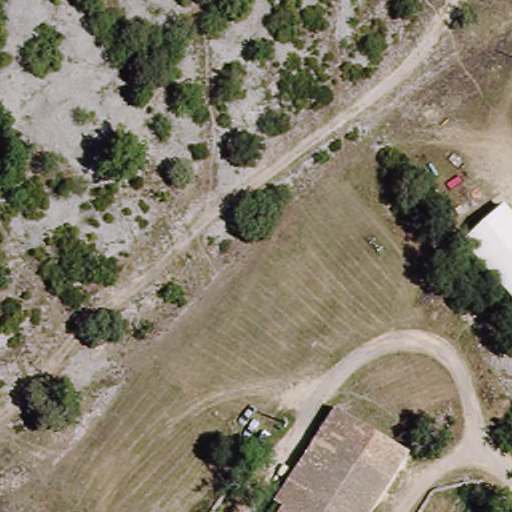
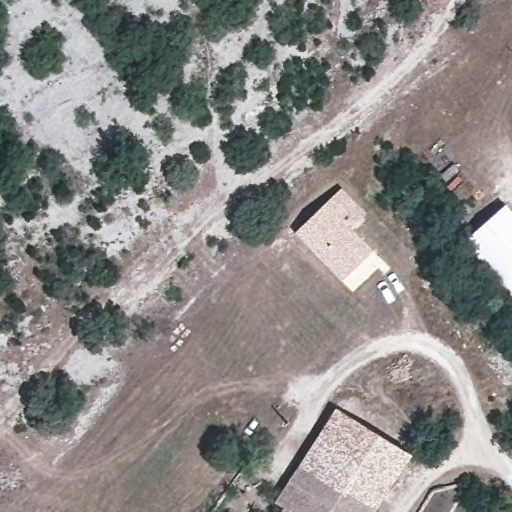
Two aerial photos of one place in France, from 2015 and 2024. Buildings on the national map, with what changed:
new [(366,215),(351,229),(374,251),(342,281),(295,233),(341,189),(366,215)]
unchanged [(509,207),(512,211),(512,293),(468,240),(509,207)]
unchanged [(331,406),(407,450),(387,483),(311,438),(331,406)]
unchanged [(311,438),(387,483),(373,507),(298,462),(311,438)]
unchanged [(373,507),(370,512),(293,512),(285,507),(274,501),(298,462),(373,507)]
unchanged [(293,512),(281,512),(285,507),(293,512)]

